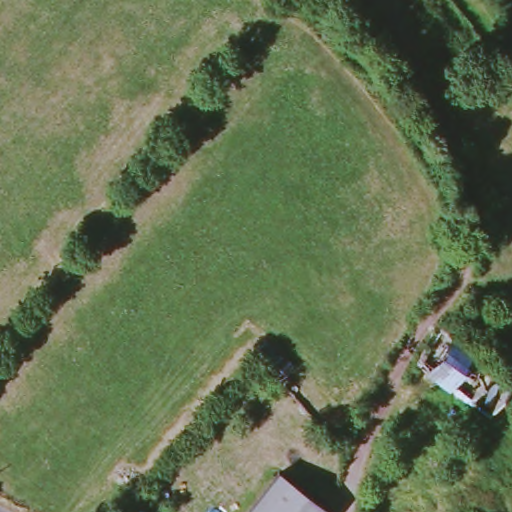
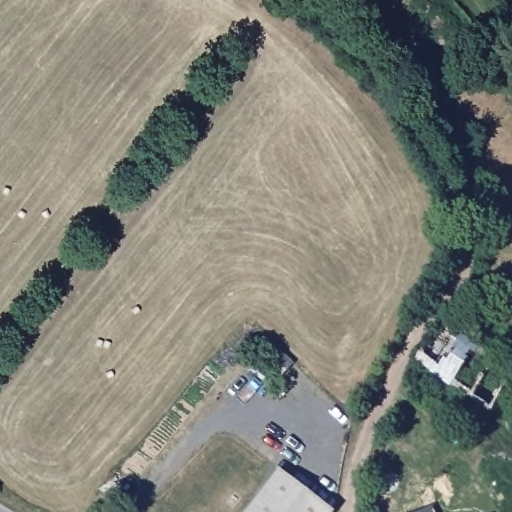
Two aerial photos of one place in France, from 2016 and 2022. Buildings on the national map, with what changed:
unchanged [(292,359),(276,378),(247,355),(262,336),(292,359)]
unchanged [(255,512),(284,472),(338,512),(255,512)]

